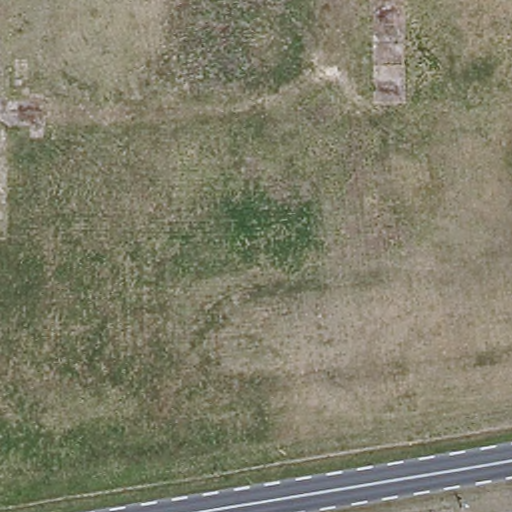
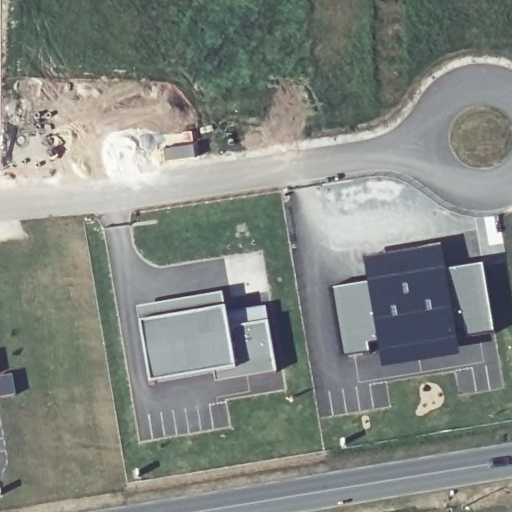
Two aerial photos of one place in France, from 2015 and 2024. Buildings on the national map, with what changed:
new [(436,249),(440,274),(370,285),(366,260),(436,249)]
new [(370,285),(440,274),(482,267),(492,337),(464,341),(462,332),(449,334),(451,345),(381,356),(379,345),(366,347),(368,356),(339,360),(329,291),(370,285)]
new [(221,295),(224,310),(138,324),(136,309),(221,295)]
new [(216,384),(214,374),(148,385),(138,324),(224,310),(224,315),(264,309),(267,324),(273,365),(275,374),(216,384)]

